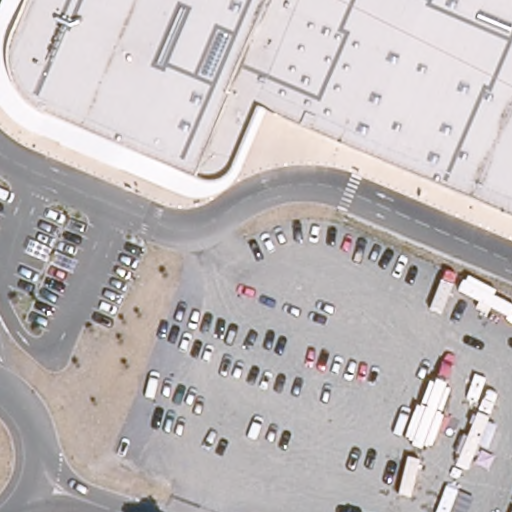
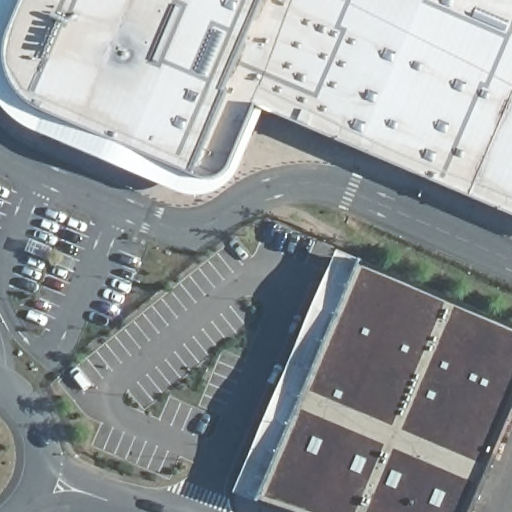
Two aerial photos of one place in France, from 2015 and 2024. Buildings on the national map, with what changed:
unchanged [(255,135),(237,176),(230,185),(222,192),(212,196),(204,199),(195,199),(187,198),(178,195),(34,132),(19,125),(8,115),(1,106),(0,106),(0,4),(2,0),(512,0),(512,216),(265,110),(255,135)]
new [(470,512),(284,512),(260,504),(365,262),(512,326),(512,415),(470,512)]

